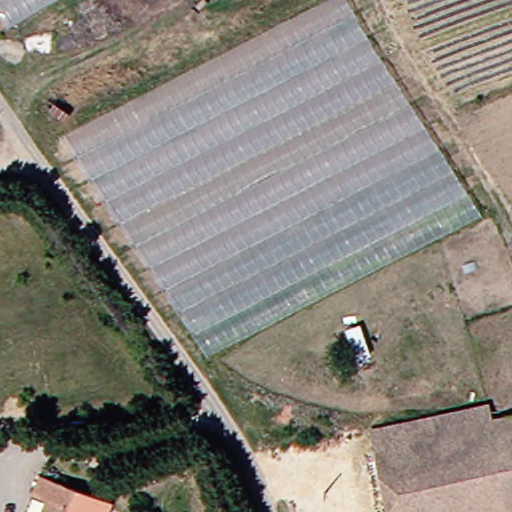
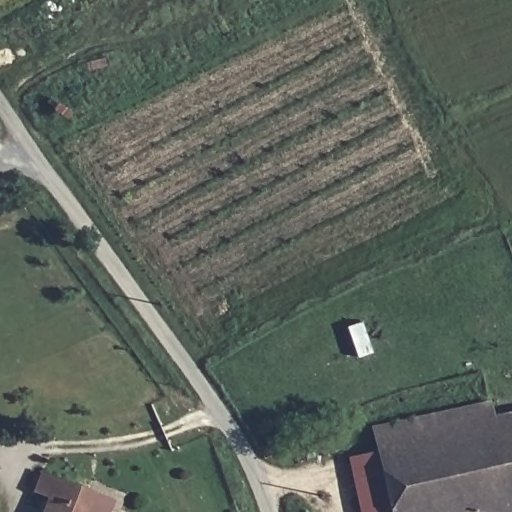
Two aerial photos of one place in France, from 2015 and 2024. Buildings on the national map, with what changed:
demolished [(0,16),(0,0),(58,0),(7,29),(0,16)]
demolished [(360,0),(491,215),(217,355),(70,135),(333,0),(360,0)]
demolished [(512,156),(495,114),(512,107),(512,156)]
unchanged [(499,423),(387,447),(382,428),(500,403),(502,416),(498,417),(499,423)]
unchanged [(495,512),(401,512),(387,447),(499,423),(498,417),(502,416),(512,414),(512,439),(504,441),(512,478),(512,512),(497,512),(495,512)]
unchanged [(512,439),(512,478),(504,441),(512,439)]
new [(400,511),(394,512),(362,512),(350,456),(387,447),(400,511)]
new [(47,497),(33,493),(40,473),(52,478),(45,492),(59,497),(54,510),(53,512),(41,512),(47,497)]
unchanged [(54,510),(59,497),(45,492),(52,475),(100,493),(93,512),(53,512),(54,510)]

